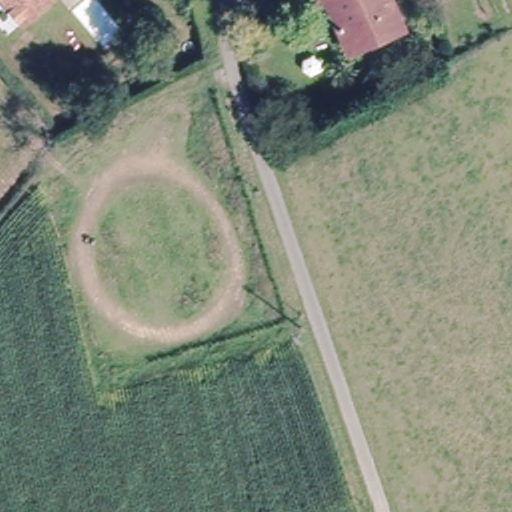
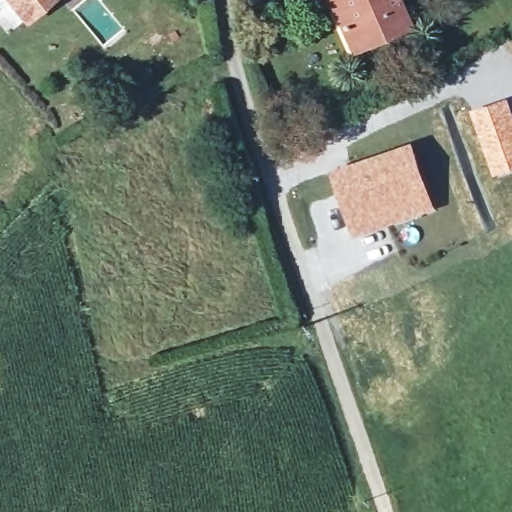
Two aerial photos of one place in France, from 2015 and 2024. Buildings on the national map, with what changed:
unchanged [(7,0),(44,0),(23,19),(7,0)]
unchanged [(352,52),(332,6),(326,9),(322,0),(396,0),(408,28),(352,52)]
new [(509,96),(512,105),(512,170),(493,176),(470,110),(509,96)]
new [(438,210),(357,240),(330,170),(412,142),(438,210)]

